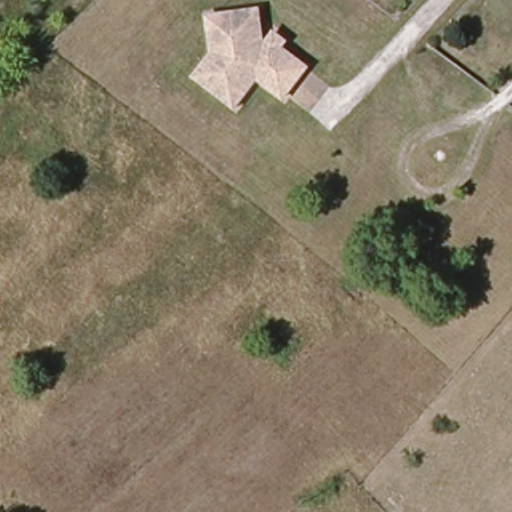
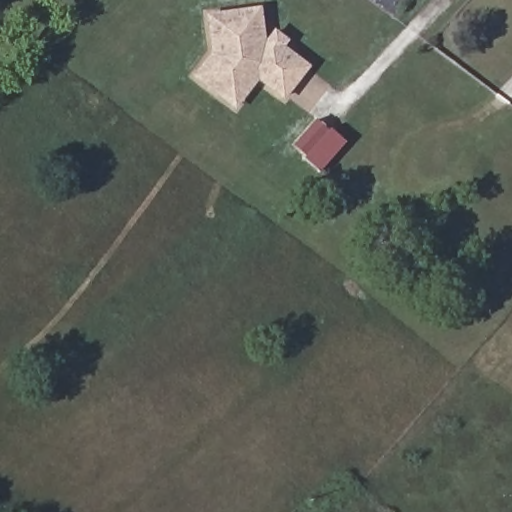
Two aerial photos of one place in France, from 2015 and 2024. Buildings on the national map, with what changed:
unchanged [(226,91),(204,74),(221,51),(216,14),(267,8),(270,29),(264,30),(265,38),(262,41),(271,47),(283,31),(294,39),(290,46),(315,65),(292,96),(266,75),(255,91),(243,105),(226,91)]
new [(316,118),(346,141),(322,171),(293,148),(316,118)]

